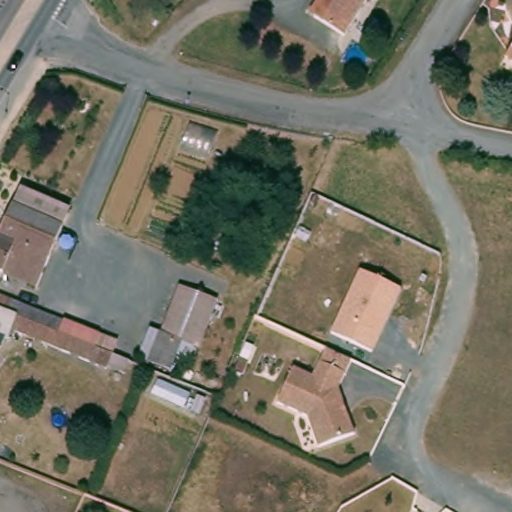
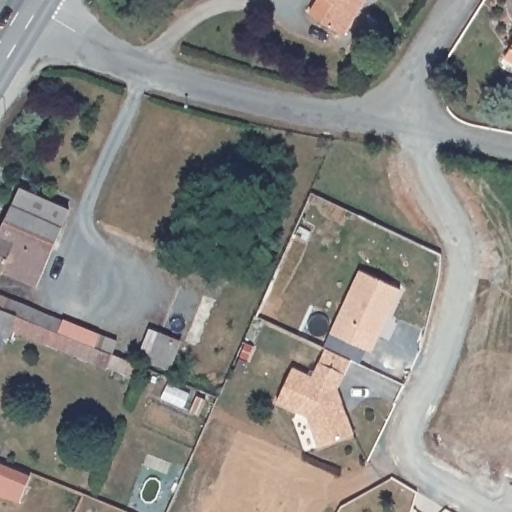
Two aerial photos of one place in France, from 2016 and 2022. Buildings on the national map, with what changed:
unchanged [(360,0),(340,32),(310,14),(318,0),(360,0)]
unchanged [(512,58),(505,54),(512,43),(512,58)]
unchanged [(35,286),(3,273),(0,280),(0,231),(10,207),(60,227),(35,286)]
unchanged [(401,290),(372,353),(330,334),(359,271),(401,290)]
unchanged [(216,298),(199,351),(182,344),(169,375),(137,364),(149,329),(160,333),(177,288),(216,298)]
unchanged [(86,363),(60,353),(6,332),(4,337),(0,335),(0,310),(1,311),(14,316),(56,332),(67,305),(100,318),(90,345),(92,347),(110,354),(104,369),(86,363)]
unchanged [(312,376),(318,364),(342,374),(335,389),(354,436),(317,446),(306,417),(277,404),(292,368),(312,376)]
new [(31,474),(21,501),(0,495),(0,461),(31,474)]

